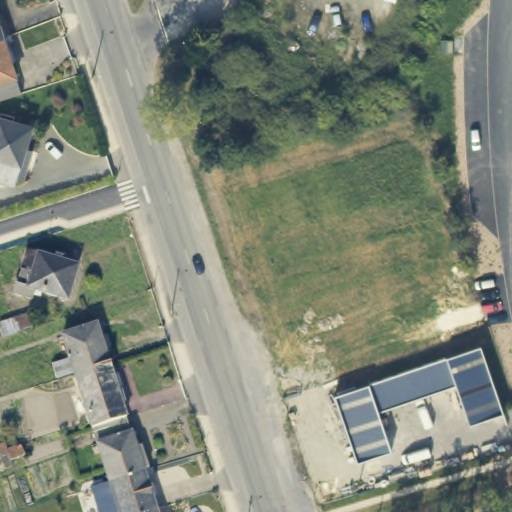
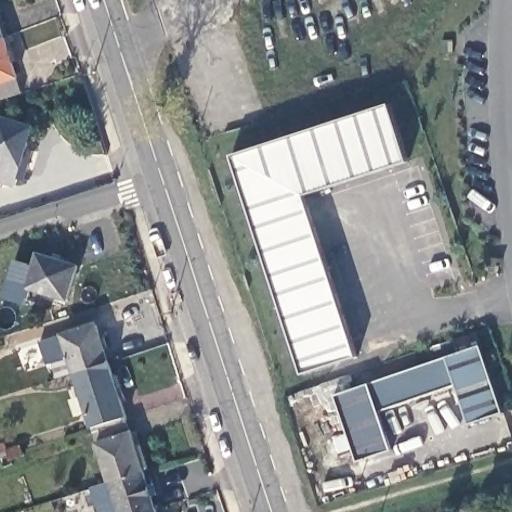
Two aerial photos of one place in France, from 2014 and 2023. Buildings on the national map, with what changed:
unchanged [(0,35),(0,20),(4,34),(0,35)]
unchanged [(21,89),(0,95),(0,35),(4,34),(21,89)]
new [(435,34),(460,34),(459,59),(434,59),(435,34)]
new [(389,104),(407,162),(302,195),(353,356),(298,373),(229,153),(389,104)]
unchanged [(27,148),(18,177),(12,176),(9,184),(0,181),(0,116),(27,125),(21,146),(27,148)]
unchanged [(73,297),(43,290),(39,300),(22,295),(29,269),(34,251),(43,253),(83,264),(73,297)]
unchanged [(93,322),(105,362),(71,372),(58,332),(93,322)]
unchanged [(454,383),(377,409),(390,448),(355,460),(332,390),(444,353),(449,367),(454,383)]
unchanged [(484,357),(502,414),(467,425),(454,383),(449,367),(484,357)]
unchanged [(71,372),(105,362),(122,416),(89,427),(71,372)]
unchanged [(89,427),(122,416),(139,470),(106,480),(89,427)]
unchanged [(3,441),(16,437),(18,443),(19,447),(7,451),(4,447),(3,441)]
unchanged [(139,470),(151,507),(134,512),(116,512),(106,480),(139,470)]
unchanged [(66,487),(70,497),(60,499),(58,495),(53,496),(51,492),(66,487)]
unchanged [(153,512),(134,512),(151,507),(153,512)]

